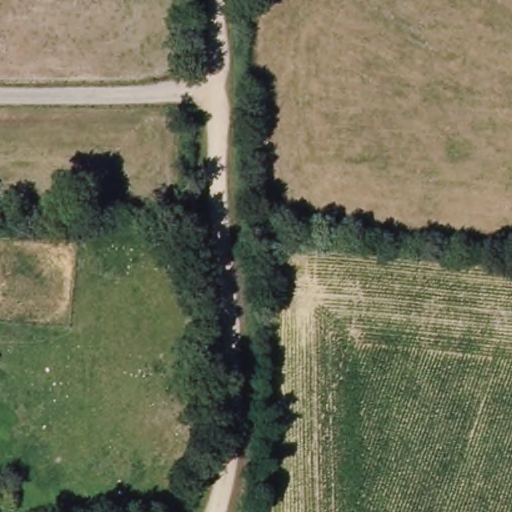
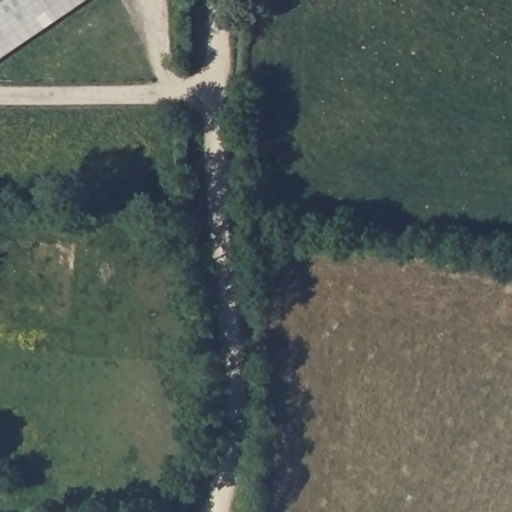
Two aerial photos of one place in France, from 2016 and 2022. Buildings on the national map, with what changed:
new [(0,61),(0,0),(91,0),(0,61)]

